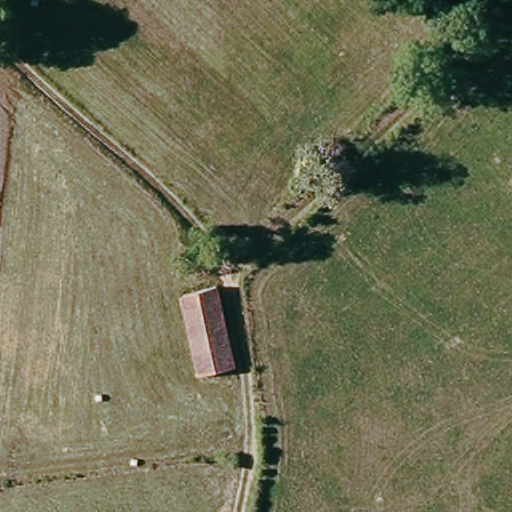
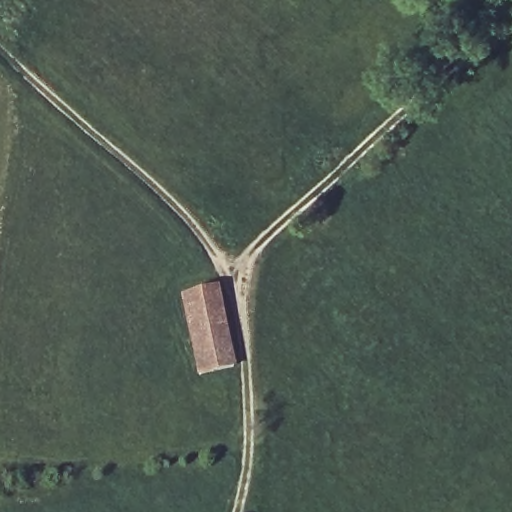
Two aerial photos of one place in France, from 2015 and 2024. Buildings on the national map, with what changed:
unchanged [(231,369),(200,378),(177,299),(209,289),(209,291),(231,369)]

